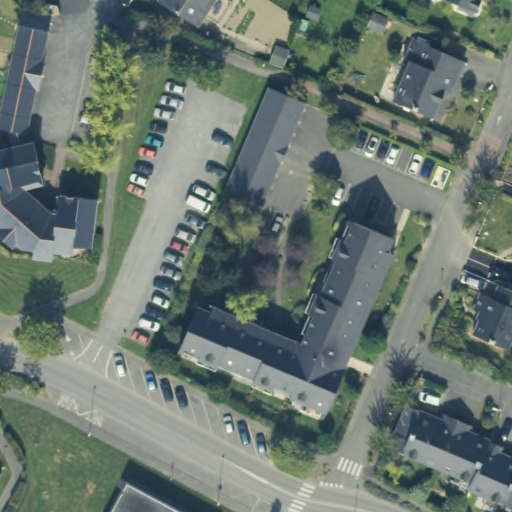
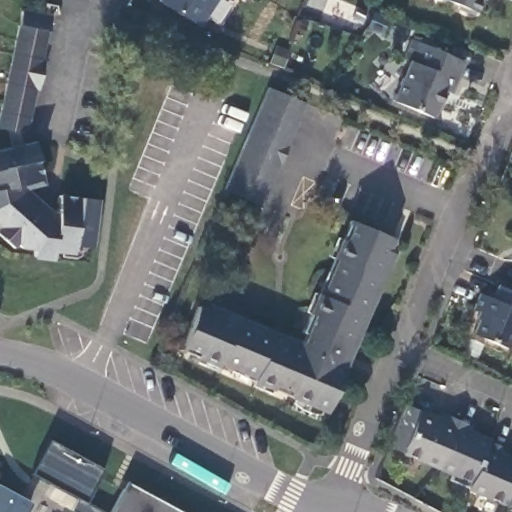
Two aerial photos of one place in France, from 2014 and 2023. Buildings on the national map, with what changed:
unchanged [(159,0),(210,0),(195,23),(159,0)]
unchanged [(472,11),(459,6),(460,4),(452,0),(481,0),(476,10),(472,11)]
unchanged [(0,223),(1,222),(0,221),(0,146),(13,143),(9,124),(0,121),(0,119),(24,4),(54,11),(45,53),(47,54),(41,85),(39,86),(30,129),(32,139),(36,139),(44,174),(21,181),(22,188),(51,214),(59,215),(63,190),(100,195),(95,243),(78,242),(76,248),(56,247),(55,254),(37,251),(37,244),(25,244),(20,239),(16,243),(0,229),(0,223)]
unchanged [(464,59),(450,91),(445,89),(434,116),(393,99),(403,76),(410,73),(415,61),(405,57),(413,38),(464,59)]
unchanged [(225,189),(267,86),(272,89),(273,89),(305,103),(263,205),(240,196),(230,191),(225,189)]
unchanged [(194,307),(209,313),(212,314),(215,307),(297,342),(301,334),(310,314),(305,312),(313,293),(317,295),(332,259),(328,257),(336,238),(345,219),(350,221),(388,238),(385,247),(391,249),(348,351),(322,412),(286,397),(288,392),(271,384),(269,389),(249,381),(251,376),(215,361),(214,365),(199,358),(190,355),(176,349),(179,344),(194,307)]
unchanged [(477,333),(485,312),(478,309),(485,292),(497,297),(502,284),(512,288),(512,346),(477,333)]
unchanged [(468,486),(471,479),(388,445),(399,421),(412,427),(420,410),(441,419),(444,412),(471,424),(469,430),(503,445),(501,451),(512,455),(512,503),(468,486)]
new [(86,504),(102,512),(75,512),(72,511),(80,498),(32,473),(51,440),(104,469),(86,504)]
unchanged [(124,481),(177,509),(183,512),(107,512),(124,481)]
new [(25,512),(0,512),(0,486),(30,503),(25,512)]

